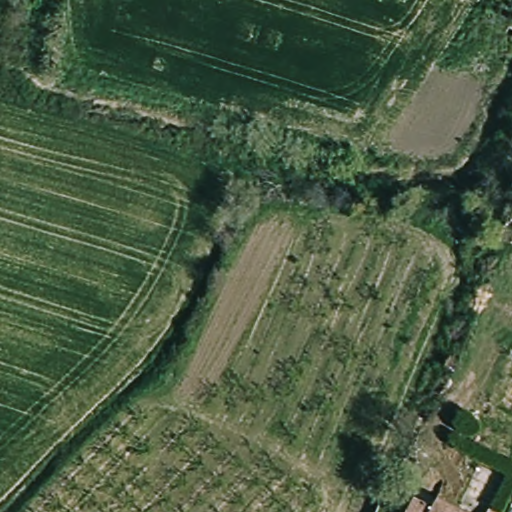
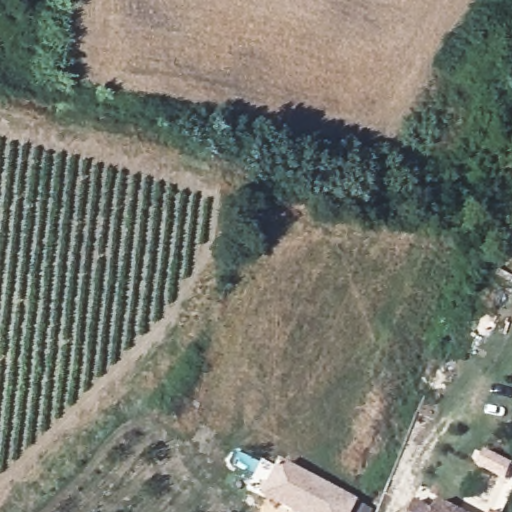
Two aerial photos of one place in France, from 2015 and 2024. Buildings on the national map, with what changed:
new [(290,512),(263,499),(281,463),(359,502),(354,512),(290,512)]
unchanged [(462,512),(431,512),(435,502),(462,512)]
unchanged [(419,512),(408,512),(410,509),(419,512)]

